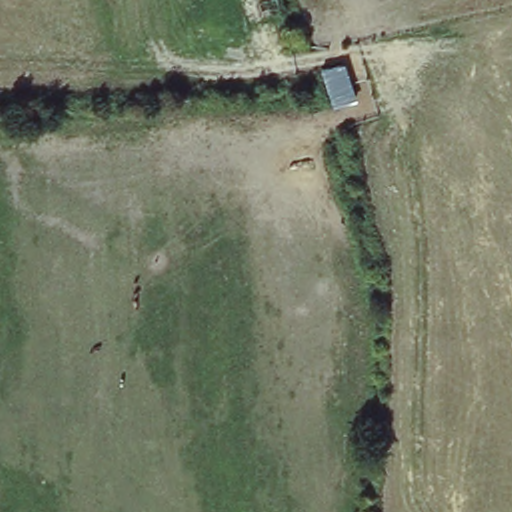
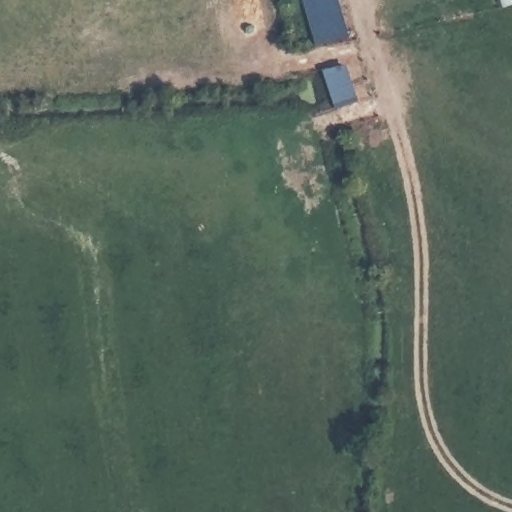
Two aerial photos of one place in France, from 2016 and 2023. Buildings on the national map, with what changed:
new [(346,31),(311,42),(298,0),(336,0),(346,31)]
unchanged [(332,107),(319,69),(347,61),(358,100),(332,107)]

